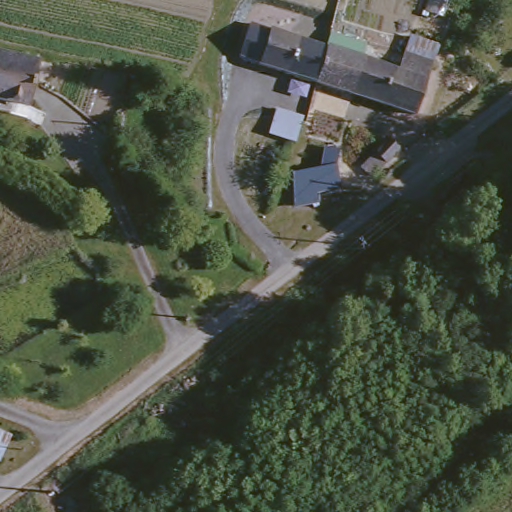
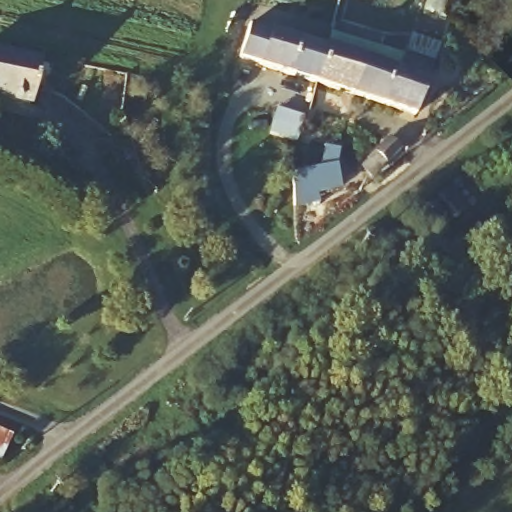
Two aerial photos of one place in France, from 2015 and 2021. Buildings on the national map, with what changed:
unchanged [(293,72),(253,56),(265,25),(320,48),(307,77),(293,72)]
unchanged [(307,77),(320,48),(356,63),(346,93),(307,77)]
unchanged [(0,55),(32,59),(26,105),(0,102),(0,55)]
unchanged [(346,93),(356,63),(392,76),(402,56),(431,68),(423,88),(409,118),(346,93)]
unchanged [(268,144),(274,121),(297,125),(290,151),(268,144)]
unchanged [(322,198),(314,209),(291,210),(293,184),(316,176),(319,151),(334,149),(329,195),(322,198)]
unchanged [(367,165),(382,154),(393,169),(376,180),(367,165)]
unchanged [(0,456),(0,439),(6,442),(0,456)]
unchanged [(30,512),(25,504),(34,497),(43,509),(39,512),(30,512)]

